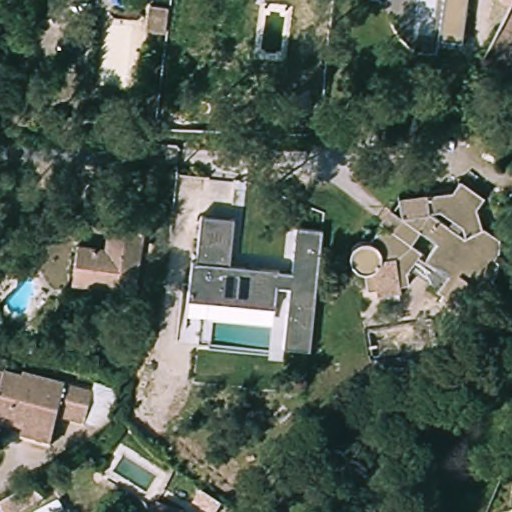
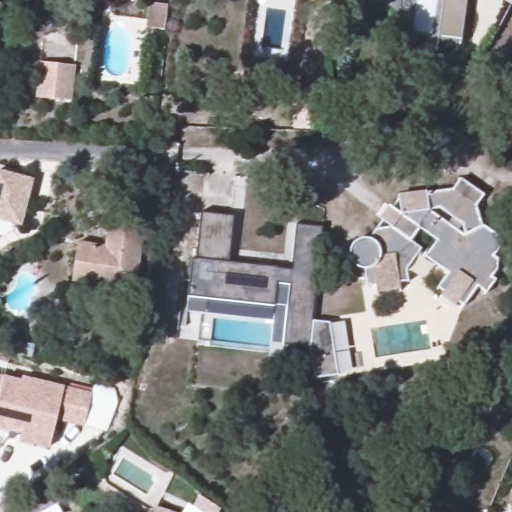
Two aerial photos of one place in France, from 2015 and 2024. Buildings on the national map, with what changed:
unchanged [(432,46),(438,0),(462,0),(455,49),(454,55),(431,52),(432,46)]
new [(38,62),(78,67),(73,104),(34,99),(38,62)]
new [(34,179),(21,227),(0,221),(0,171),(34,179)]
unchanged [(377,295),(376,287),(366,288),(364,273),(363,273),(362,273),(361,273),(359,272),(358,272),(356,272),(355,271),(354,271),(352,269),(351,267),(350,266),(349,263),(348,262),(347,261),(347,260),(347,257),(347,256),(347,254),(347,253),(347,252),(348,250),(349,248),(349,247),(351,246),(351,245),(352,244),(354,242),(355,242),(357,241),(359,240),(361,240),(362,239),(363,239),(364,239),(366,239),(367,239),(369,240),(381,223),(379,222),(390,206),(401,214),(399,196),(453,191),(462,177),(488,195),(479,208),(486,236),(497,243),(499,251),(465,300),(442,284),(449,274),(427,258),(439,241),(421,229),(411,242),(422,249),(404,274),(399,271),(400,281),(402,293),(377,295)]
unchanged [(206,299),(186,296),(193,258),(196,259),(205,213),(238,219),(229,263),(291,275),(299,231),(325,235),(304,352),(278,347),(288,290),(276,288),(273,305),(272,311),(206,299)]
unchanged [(77,260),(82,240),(99,243),(111,246),(117,222),(150,230),(135,289),(89,282),(84,281),(71,277),(77,260)]
unchanged [(26,382),(28,378),(91,399),(80,432),(55,423),(47,447),(14,436),(16,430),(3,426),(1,432),(0,431),(0,373),(26,382)]
unchanged [(44,505),(31,512),(0,512),(0,507),(28,489),(44,505)]
unchanged [(217,512),(198,512),(190,507),(197,496),(219,508),(217,512)]
unchanged [(159,503),(181,512),(156,512),(159,503)]

